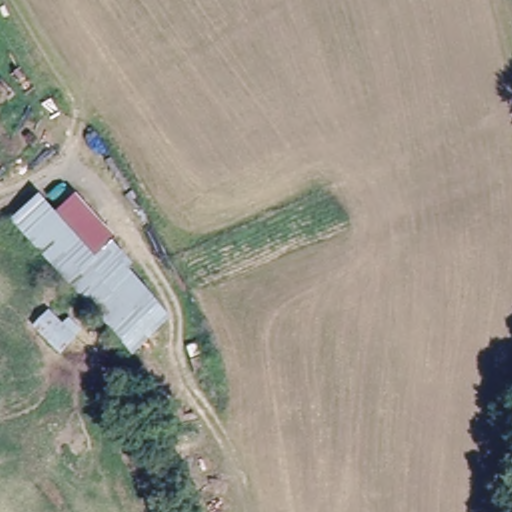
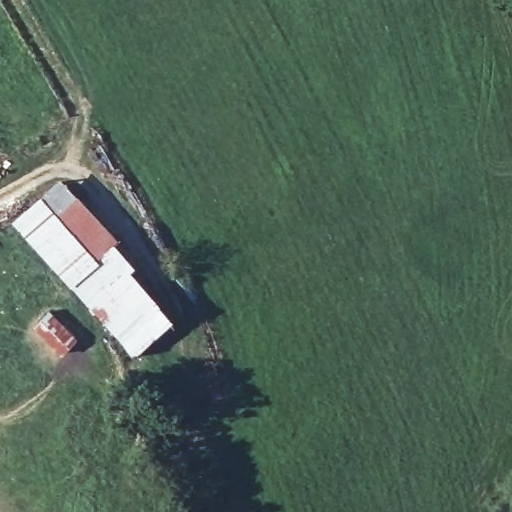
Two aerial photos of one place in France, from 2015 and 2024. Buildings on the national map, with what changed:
unchanged [(45,193),(61,210),(83,193),(123,237),(117,241),(139,265),(134,270),(176,319),(137,354),(14,219),(45,193)]
unchanged [(55,310),(84,336),(65,357),(34,328),(55,310)]

